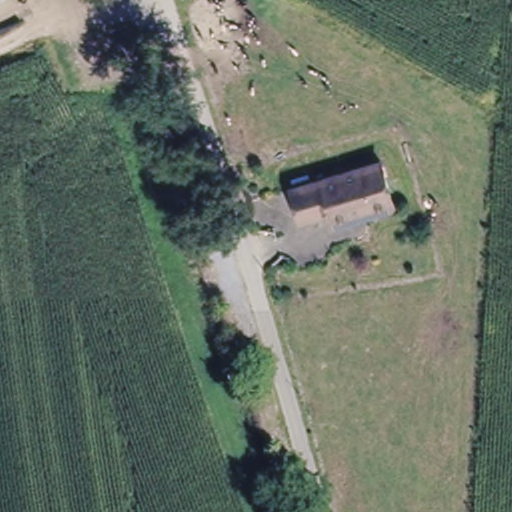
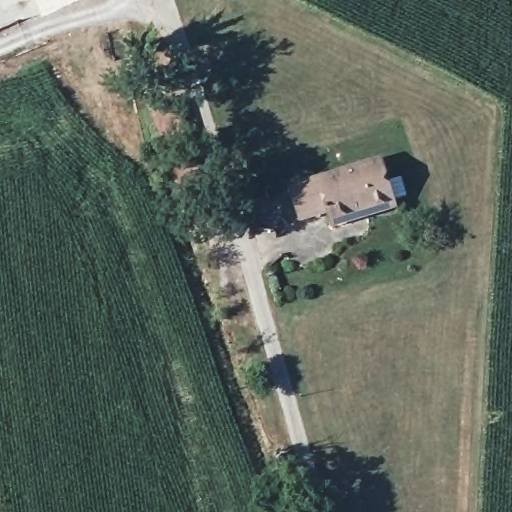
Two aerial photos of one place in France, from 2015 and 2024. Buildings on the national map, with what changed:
unchanged [(350,218),(330,225),(325,210),(299,219),(289,187),(377,161),(389,200),(390,206),(350,218)]

